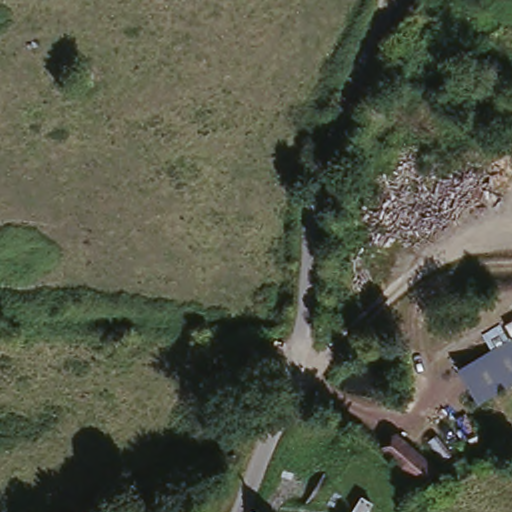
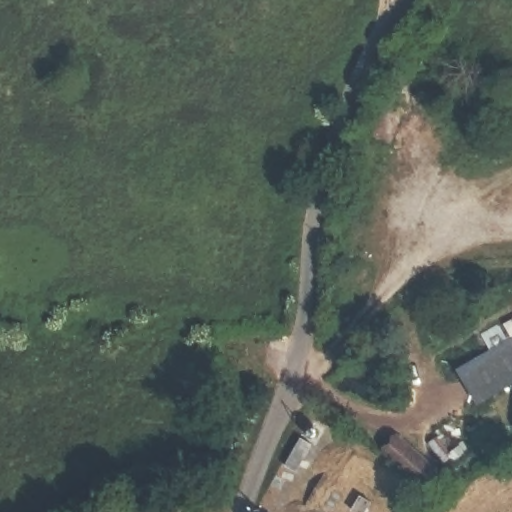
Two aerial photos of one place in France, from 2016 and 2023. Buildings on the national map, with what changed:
unchanged [(427,0),(453,0),(441,29),(418,18),(427,0)]
unchanged [(368,139),(396,70),(417,79),(393,148),(368,139)]
unchanged [(510,341),(502,327),(512,322),(512,385),(477,406),(459,371),(510,341)]
unchanged [(400,437),(439,470),(424,478),(390,449),(400,437)]
unchanged [(359,491),(368,496),(360,512),(350,506),(359,491)]

